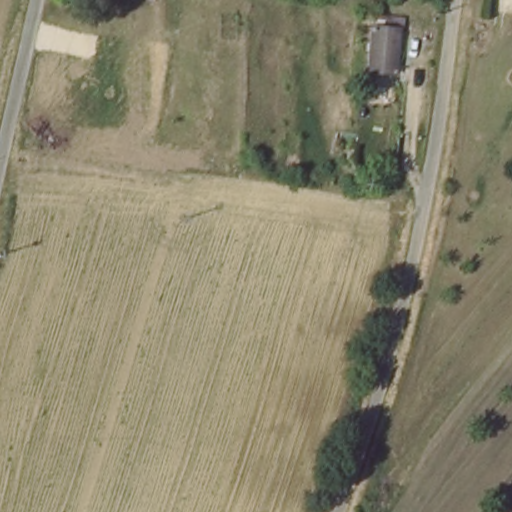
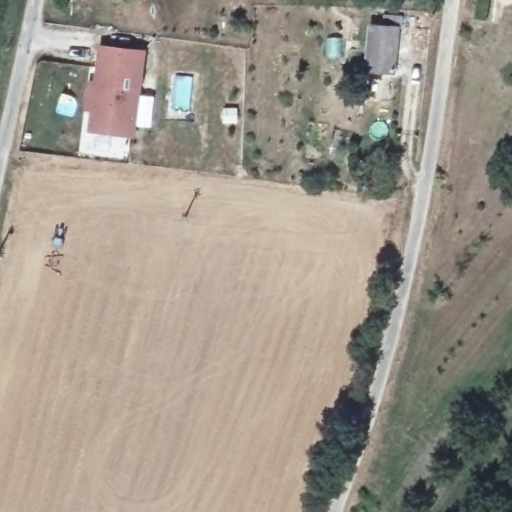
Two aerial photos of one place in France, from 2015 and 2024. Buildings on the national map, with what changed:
demolished [(348,25),(347,36),(332,35),(333,23),(348,25)]
unchanged [(366,67),(370,26),(398,29),(395,70),(366,67)]
new [(144,51),(133,139),(85,132),(88,112),(83,111),(87,80),(92,81),(98,44),(144,51)]

